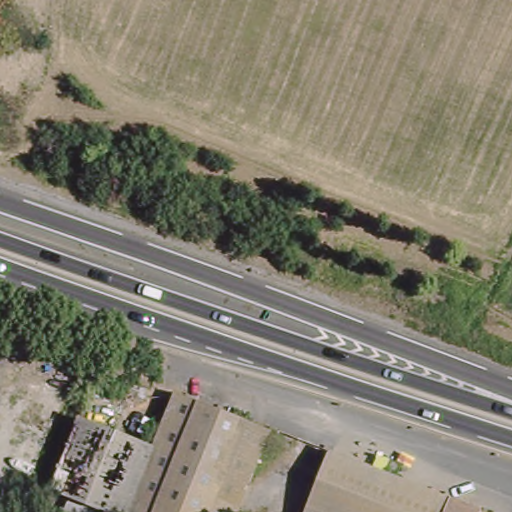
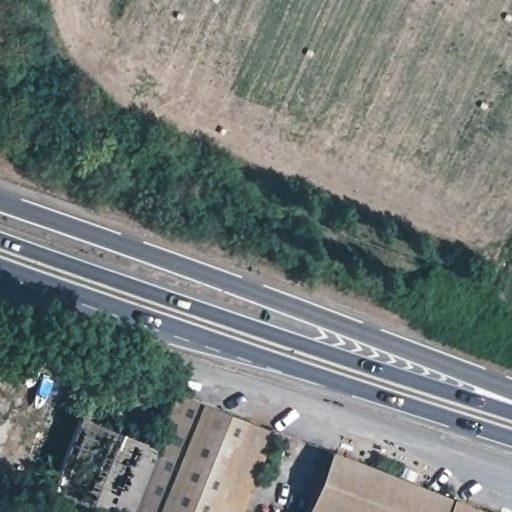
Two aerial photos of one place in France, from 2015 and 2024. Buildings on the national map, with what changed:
unchanged [(128,512),(153,448),(175,393),(270,431),(237,512),(128,512)]
unchanged [(107,512),(50,490),(80,418),(153,448),(128,512),(107,512)]
unchanged [(480,511),(483,512),(307,512),(331,452),(480,511)]

